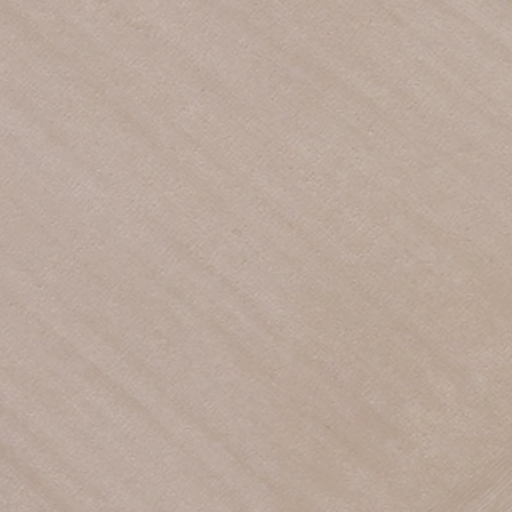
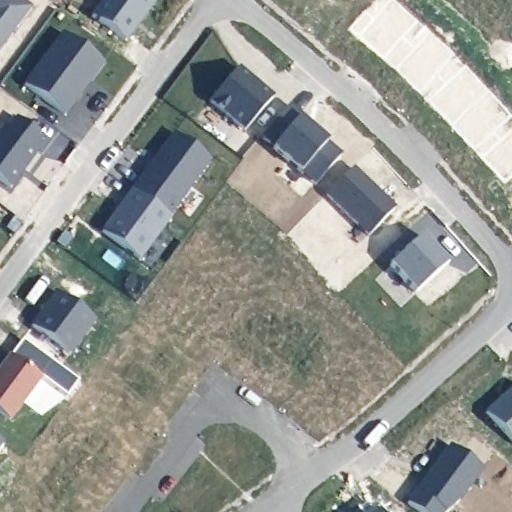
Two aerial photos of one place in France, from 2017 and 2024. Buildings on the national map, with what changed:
new [(0,50),(0,0),(18,0),(30,9),(0,50)]
new [(153,1),(124,41),(90,16),(103,0),(152,0),(153,1)]
new [(102,63),(90,79),(89,79),(83,86),(84,87),(64,115),(24,85),(62,33),(102,63)]
new [(273,96),(245,129),(210,99),(238,66),(273,96)]
new [(313,188),(298,174),(272,150),(261,138),(290,106),(299,116),(326,142),(341,156),(313,188)]
new [(10,190),(0,182),(0,130),(4,125),(8,127),(16,117),(43,139),(36,148),(39,152),(10,190)]
new [(170,138),(205,164),(166,216),(131,190),(170,138)]
new [(325,197),(353,169),(395,210),(367,238),(325,197)]
new [(168,218),(137,261),(100,233),(131,190),(168,218)]
new [(445,265),(413,294),(388,267),(420,237),(445,265)]
new [(70,357),(30,327),(56,293),(95,322),(70,357)]
new [(40,378),(10,356),(22,341),(78,382),(65,397),(40,378)]
new [(40,378),(8,421),(0,414),(0,364),(7,354),(40,378)]
new [(512,444),(485,413),(512,389),(512,444)]
new [(0,448),(0,443),(2,444),(0,448)]
new [(448,447),(483,472),(461,501),(447,512),(417,512),(406,504),(448,447)]

